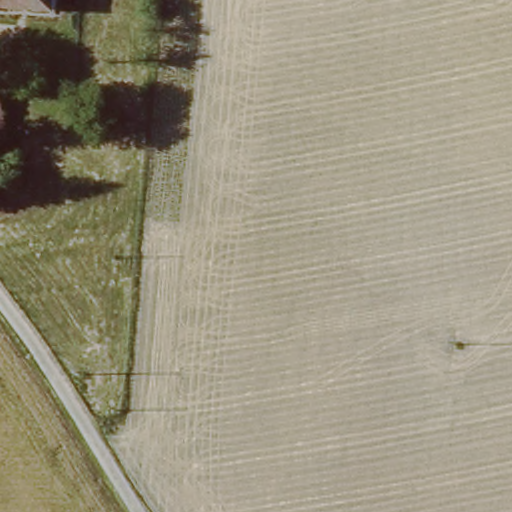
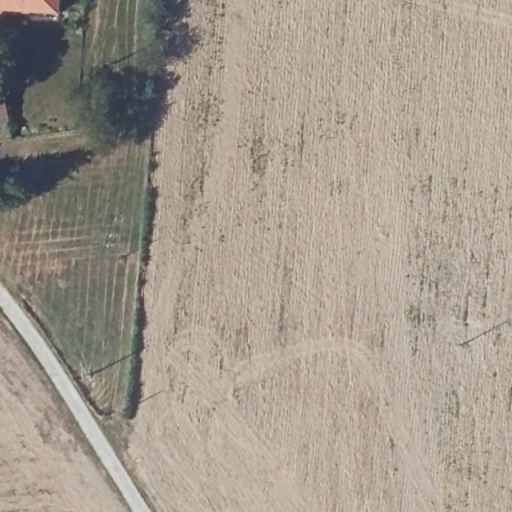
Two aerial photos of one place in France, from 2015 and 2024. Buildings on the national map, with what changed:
unchanged [(0,11),(0,0),(62,0),(61,15),(0,11)]
unchanged [(0,144),(0,100),(10,99),(17,140),(0,144)]

